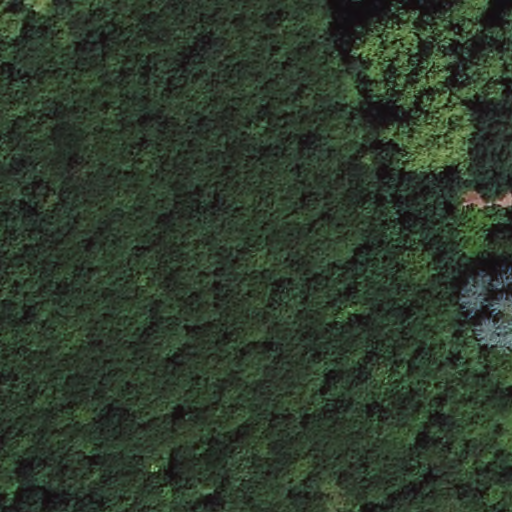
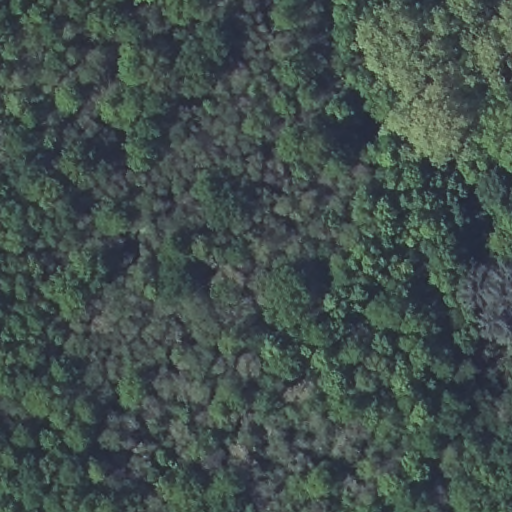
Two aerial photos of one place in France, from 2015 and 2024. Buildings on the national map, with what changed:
unchanged [(479,159),(471,134),(512,121),(512,150),(479,159)]
unchanged [(459,216),(445,176),(464,170),(468,181),(512,168),(512,200),(459,216)]

